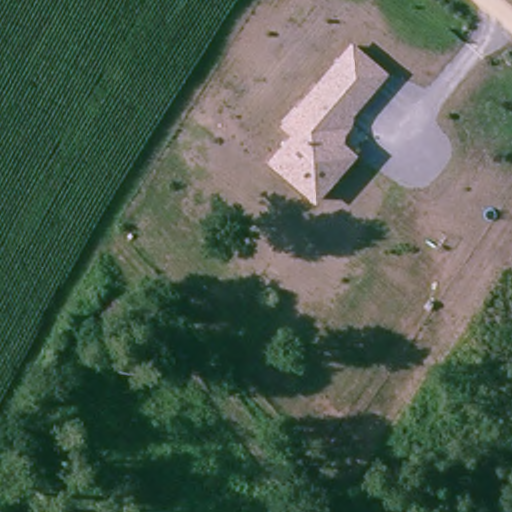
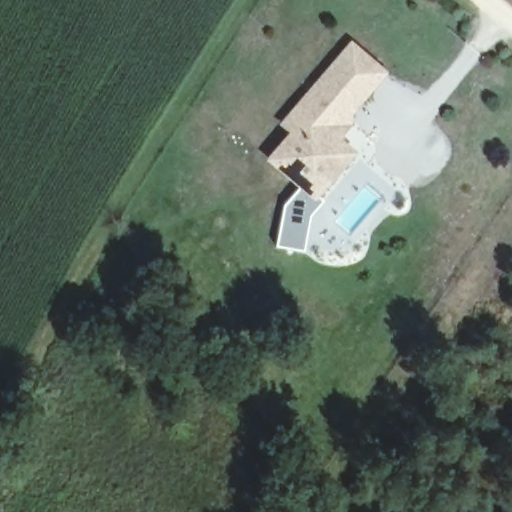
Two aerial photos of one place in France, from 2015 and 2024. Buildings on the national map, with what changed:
unchanged [(272,164),(299,131),(290,123),(299,112),(340,63),(352,47),(356,43),(389,70),(385,75),(348,120),(351,123),(341,135),(340,145),(354,157),(335,181),(318,201),(272,164)]
new [(325,200),(311,217),(305,252),(277,247),(284,205),(300,186),(318,201),(321,197),(325,200)]

